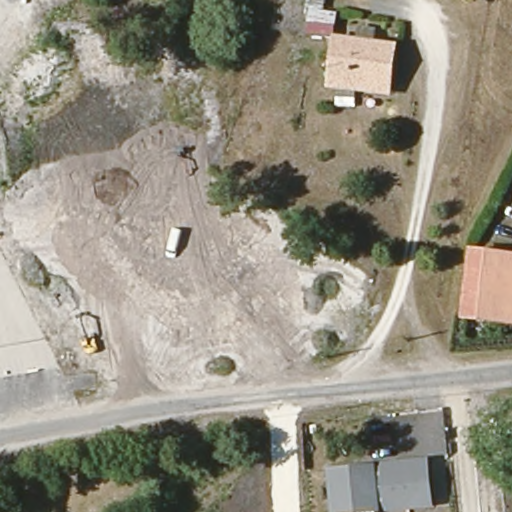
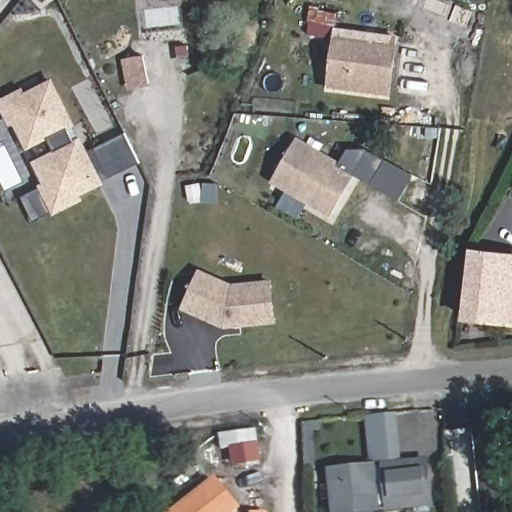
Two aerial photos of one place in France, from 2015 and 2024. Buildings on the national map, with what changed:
unchanged [(326,8),(338,12),(335,42),(310,37),(315,0),(329,0),(326,8)]
unchanged [(340,39),(401,47),(393,95),(334,87),(340,39)]
new [(127,88),(124,60),(144,58),(148,86),(127,88)]
new [(32,215),(24,199),(45,189),(49,186),(37,163),(56,153),(50,141),(31,150),(17,124),(13,125),(2,105),(20,95),(23,100),(50,85),(72,129),(68,131),(74,144),(79,141),(101,185),(80,195),(82,200),(58,213),(46,220),(37,224),(32,215)]
new [(126,134),(142,164),(112,180),(97,149),(126,134)]
new [(272,182),(297,136),(358,171),(330,217),(272,182)]
unchanged [(473,252),(512,257),(512,324),(464,318),(473,252)]
new [(224,328),(182,308),(200,268),(233,284),(272,280),(277,323),(224,328)]
unchanged [(405,512),(332,512),(329,469),(429,459),(434,510),(405,512)]
new [(241,509),(238,512),(172,512),(215,477),(241,509)]

